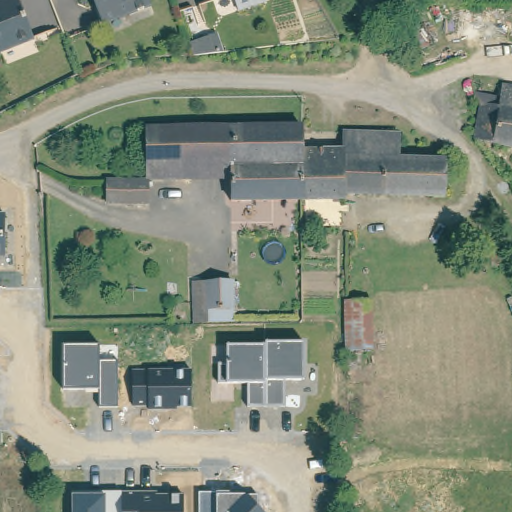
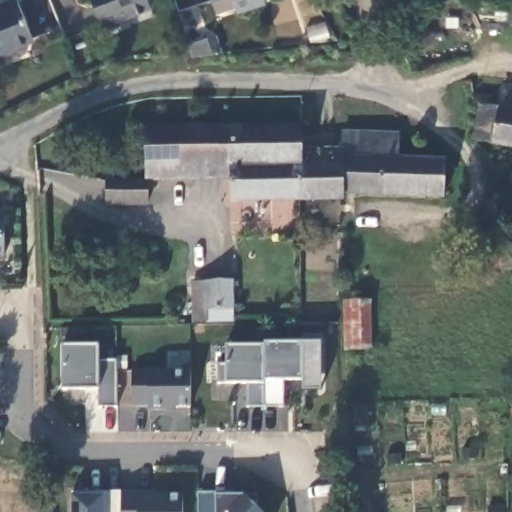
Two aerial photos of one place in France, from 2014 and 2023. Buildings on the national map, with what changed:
unchanged [(12,0),(18,0),(33,38),(0,52),(0,5),(12,0)]
unchanged [(131,15),(125,12),(102,21),(94,0),(149,0),(152,7),(131,15)]
unchanged [(238,6),(236,0),(256,0),(238,6)]
unchanged [(35,44),(33,38),(62,27),(64,33),(35,44)]
unchanged [(216,32),(222,52),(218,52),(215,53),(193,55),(188,41),(209,35),(216,32)]
unchanged [(504,108),(507,86),(512,87),(512,146),(479,139),(485,105),(504,108)]
unchanged [(235,200),(235,178),(153,179),(152,128),(307,126),(307,148),(305,199),(235,200)]
unchanged [(403,157),(450,159),(449,196),(348,192),(348,198),(305,199),(307,148),(347,148),(347,130),(404,132),(403,157)]
unchanged [(113,180),(153,181),(153,203),(112,203),(113,180)]
unchanged [(4,256),(0,257),(0,214),(5,213),(4,256)]
unchanged [(233,280),(234,321),(194,322),(193,281),(233,280)]
unchanged [(346,349),(345,301),(371,301),(372,349),(346,349)]
unchanged [(248,407),(248,382),(227,382),(227,346),(266,347),(266,343),(303,342),(303,381),(285,381),(285,405),(248,407)]
unchanged [(100,407),(98,388),(65,388),(63,345),(100,345),(101,361),(117,360),(119,406),(100,407)]
unchanged [(135,405),(135,369),(190,369),(190,406),(135,405)]
unchanged [(93,496),(93,491),(159,492),(159,495),(182,494),(183,512),(74,512),(74,497),(93,496)]
unchanged [(215,494),(233,493),(257,494),(258,511),(259,512),(200,512),(200,495),(215,494)]

